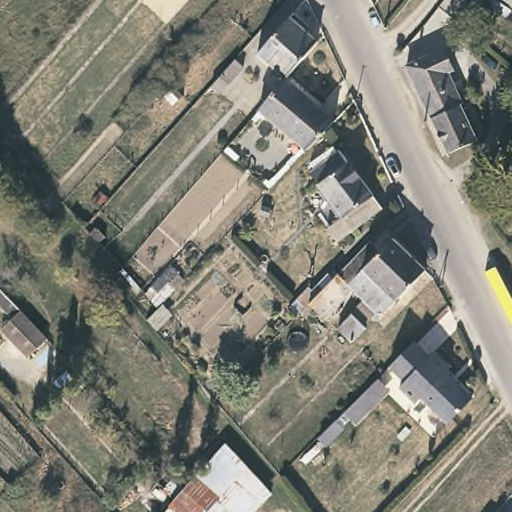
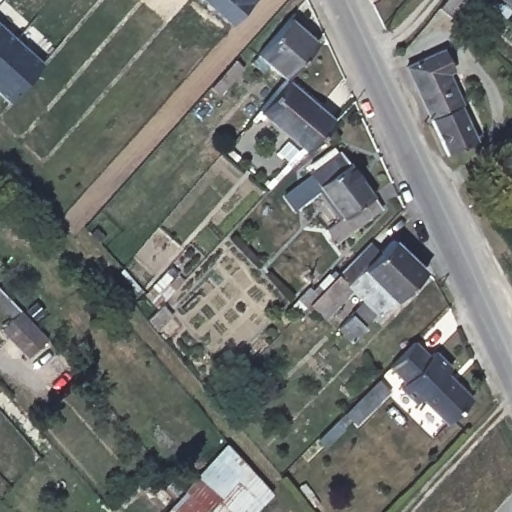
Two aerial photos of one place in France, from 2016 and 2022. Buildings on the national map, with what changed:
unchanged [(438,5),(443,0),(475,0),(454,21),(438,5)]
unchanged [(502,0),(512,0),(512,7),(502,0)]
unchanged [(286,82),(258,56),(293,16),(309,30),(304,35),(317,46),(289,78),(286,82)]
new [(11,102),(0,91),(0,21),(45,62),(11,102)]
unchanged [(404,62),(440,46),(449,67),(445,69),(460,101),(429,116),(404,62)]
unchanged [(235,59),(246,69),(233,85),(229,89),(218,79),(221,75),(235,59)]
unchanged [(289,78),(334,120),(306,149),(263,109),(286,82),(289,78)]
unchanged [(460,101),(477,137),(445,152),(429,116),(460,101)]
unchanged [(325,231),(333,225),(341,218),(312,176),(318,171),(314,167),(335,152),(339,156),(341,155),(381,209),(342,237),(334,244),(325,231)]
unchanged [(295,297),(307,285),(314,292),(320,286),(324,291),(357,257),(371,242),(382,251),(395,237),(428,269),(376,322),(373,318),(364,326),(367,330),(353,344),(340,331),(365,303),(354,292),(325,321),(310,306),(308,308),(300,316),(288,304),(295,297)]
unchanged [(48,342),(30,357),(5,329),(22,312),(48,342)]
unchanged [(427,359),(432,353),(449,370),(443,376),(468,400),(444,426),(418,401),(414,406),(397,390),(402,386),(386,368),(411,343),(427,359)]
unchanged [(381,393),(353,422),(344,412),(372,383),(381,393)]
unchanged [(139,503),(150,491),(156,493),(171,477),(186,490),(225,444),(271,494),(254,512),(177,512),(171,507),(166,512),(149,512),(139,503)]

